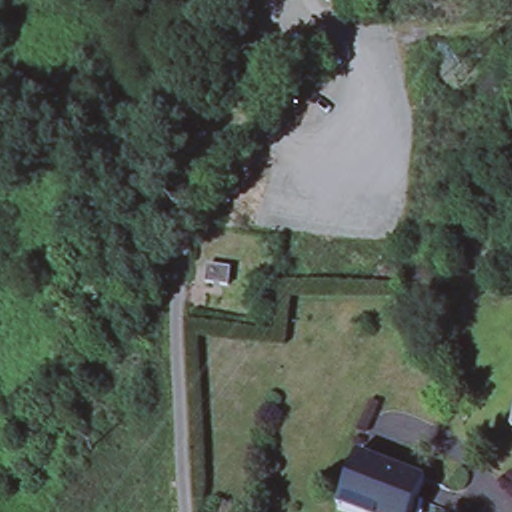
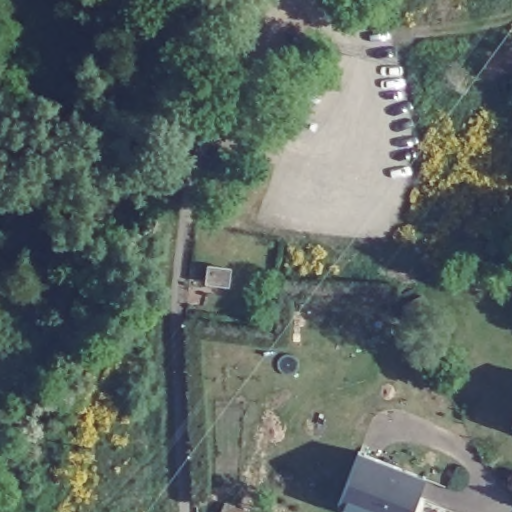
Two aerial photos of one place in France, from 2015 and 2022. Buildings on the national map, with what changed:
unchanged [(227,267),(225,284),(203,282),(205,265),(227,267)]
unchanged [(422,298),(430,312),(413,321),(409,321),(403,307),(422,298)]
unchanged [(512,425),(512,428),(511,428),(512,425)]
unchanged [(421,476),(408,512),(357,512),(337,505),(336,504),(356,452),(358,452),(421,476)]
unchanged [(245,511),(245,512),(222,512),(225,503),(245,511)]

